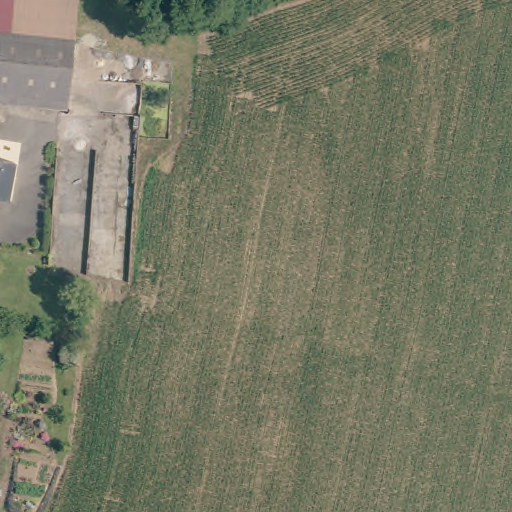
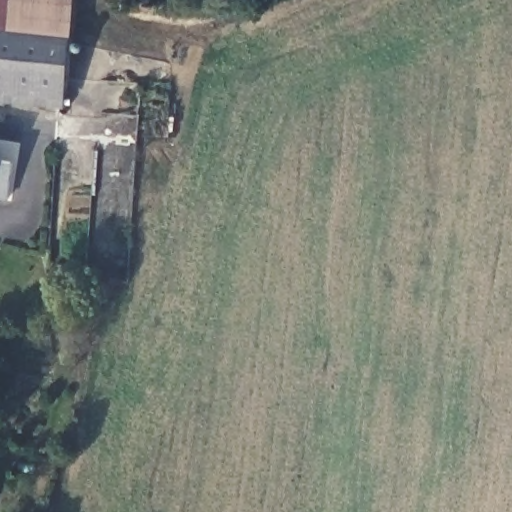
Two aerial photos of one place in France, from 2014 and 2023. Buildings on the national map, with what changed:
unchanged [(73,48),(0,36),(0,0),(82,0),(73,48)]
unchanged [(64,103),(0,92),(0,36),(73,48),(64,103)]
unchanged [(6,197),(0,195),(0,157),(14,160),(6,197)]

